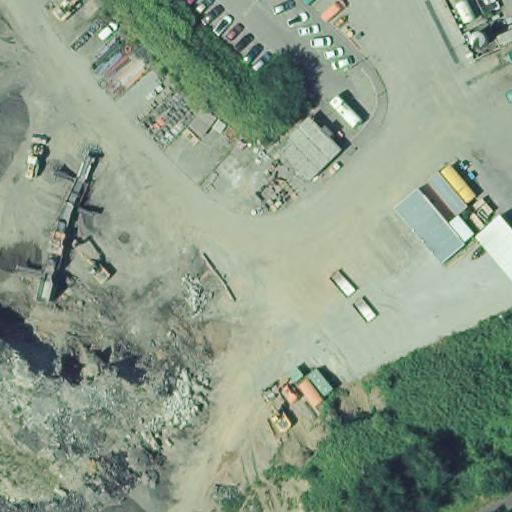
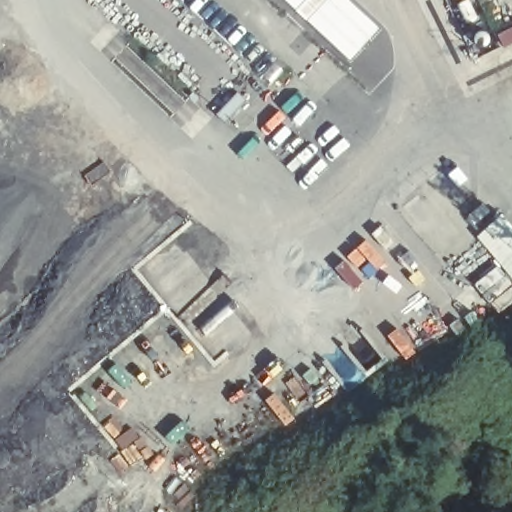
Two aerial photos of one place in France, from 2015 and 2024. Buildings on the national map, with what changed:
new [(283,0),(324,0),(305,21),(283,0)]
new [(350,0),(380,28),(350,61),(305,21),(324,0),(350,0)]
unchanged [(312,118),(346,150),(314,181),(280,149),(312,118)]
unchanged [(512,225),(512,276),(480,240),(503,214),(512,225)]

